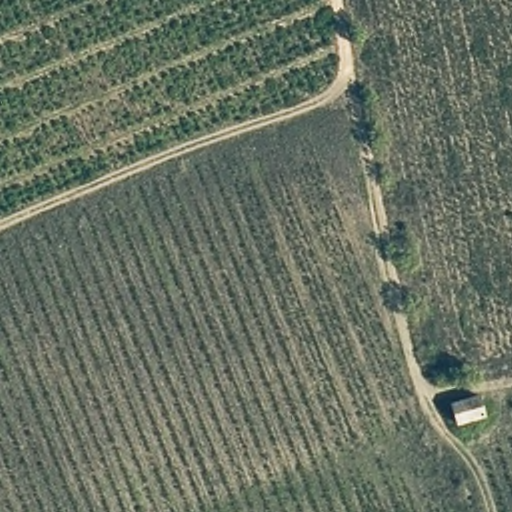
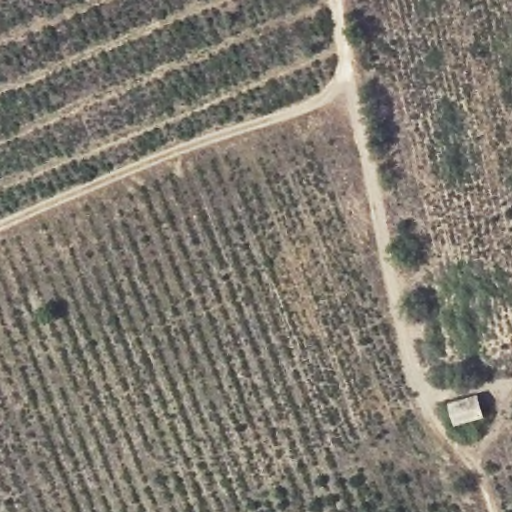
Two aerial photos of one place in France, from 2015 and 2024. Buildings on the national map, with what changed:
unchanged [(446,402),(474,393),(482,413),(454,426),(446,402)]

